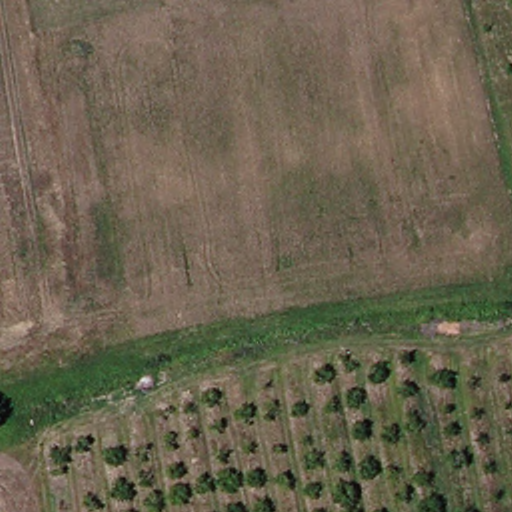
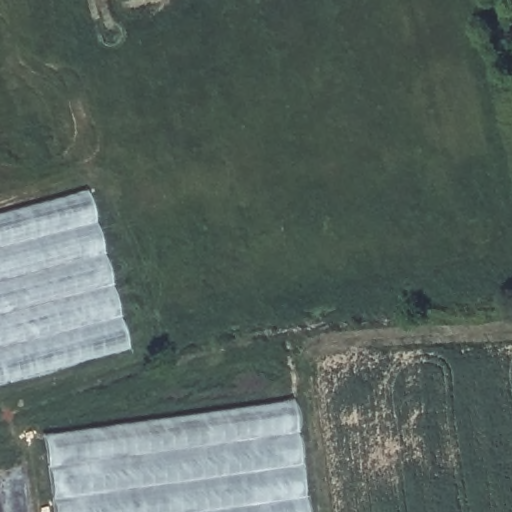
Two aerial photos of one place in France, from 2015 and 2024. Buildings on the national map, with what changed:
new [(85,191),(128,350),(0,383),(0,214),(85,191)]
new [(291,402),(307,512),(53,512),(43,438),(291,402)]
new [(30,512),(0,512),(0,481),(25,477),(30,512)]

